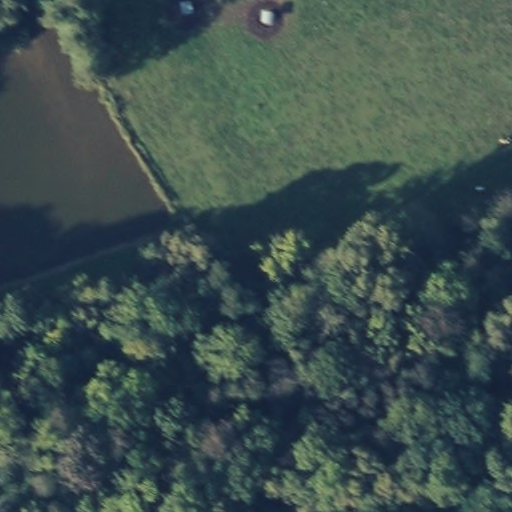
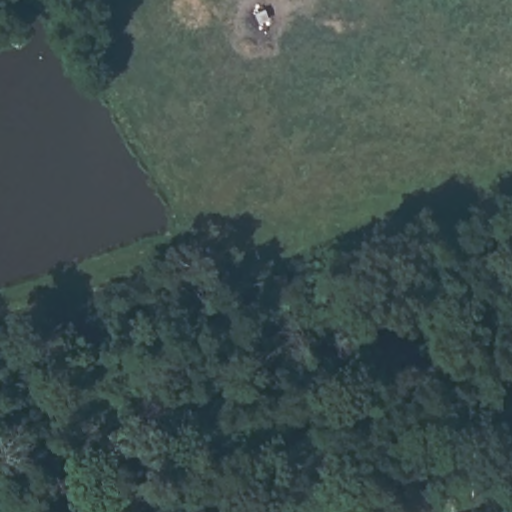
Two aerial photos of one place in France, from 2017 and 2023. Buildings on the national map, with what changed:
unchanged [(476,512),(462,512),(475,508),(476,512)]

